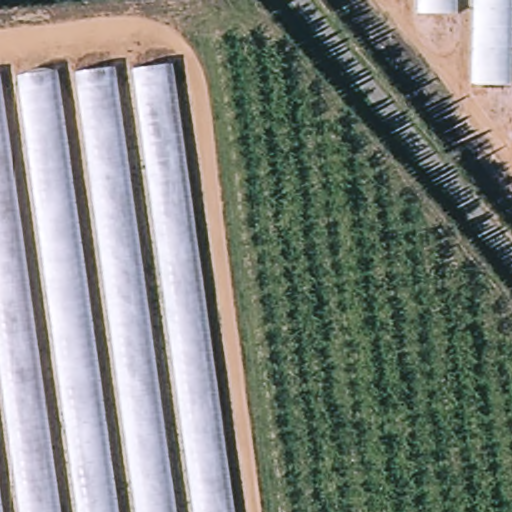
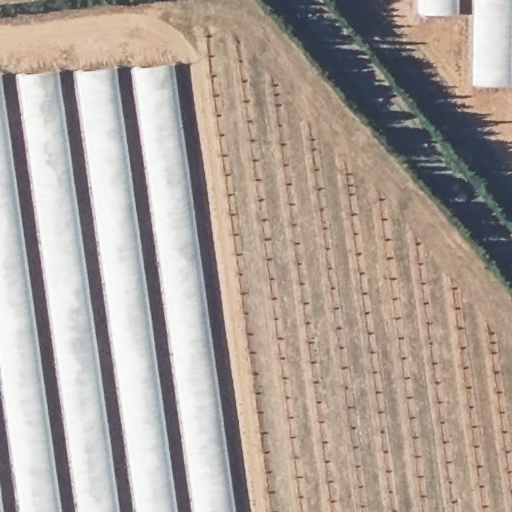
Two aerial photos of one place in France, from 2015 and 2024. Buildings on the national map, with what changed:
unchanged [(473,85),(475,15),(423,12),(422,0),(512,0),(512,87),(473,85)]
unchanged [(238,512),(0,512),(0,72),(175,61),(238,512)]

